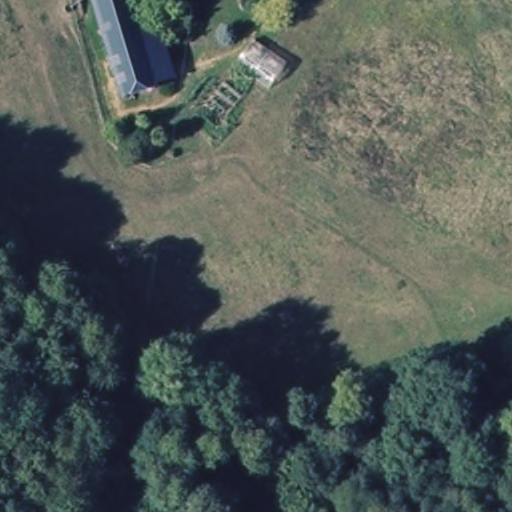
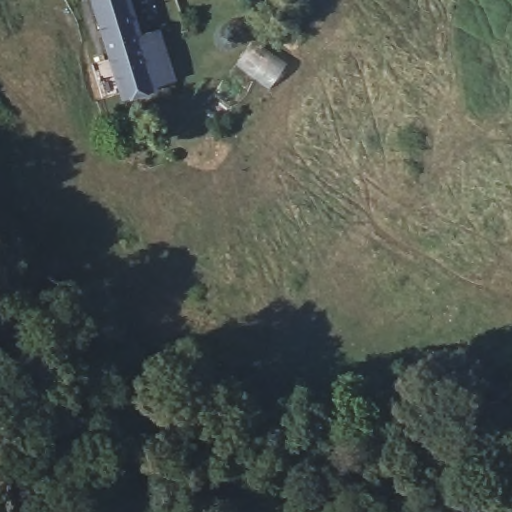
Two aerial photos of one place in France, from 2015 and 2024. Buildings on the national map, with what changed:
unchanged [(98,0),(125,0),(146,45),(165,37),(180,78),(120,97),(111,61),(94,13),(90,4),(98,0)]

